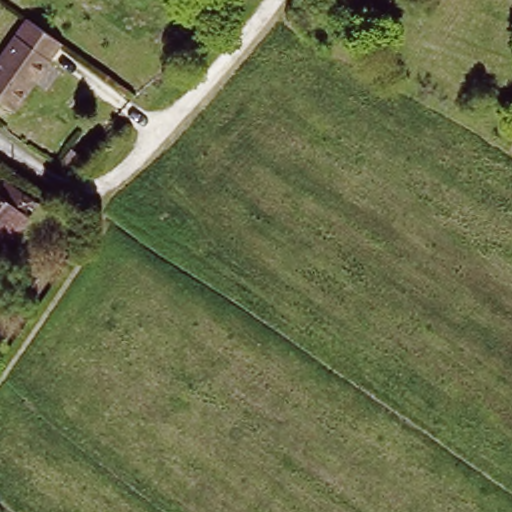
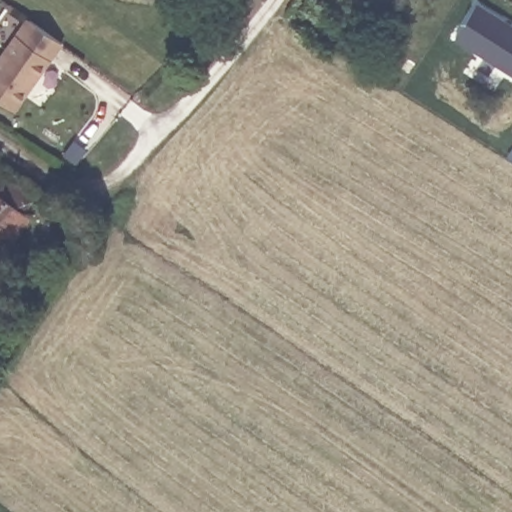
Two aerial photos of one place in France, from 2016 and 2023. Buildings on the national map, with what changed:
new [(512,32),(512,79),(451,40),(472,7),(512,32)]
unchanged [(13,22),(49,45),(3,112),(0,110),(0,42),(13,22)]
unchanged [(20,205),(0,233),(0,191),(20,205)]

